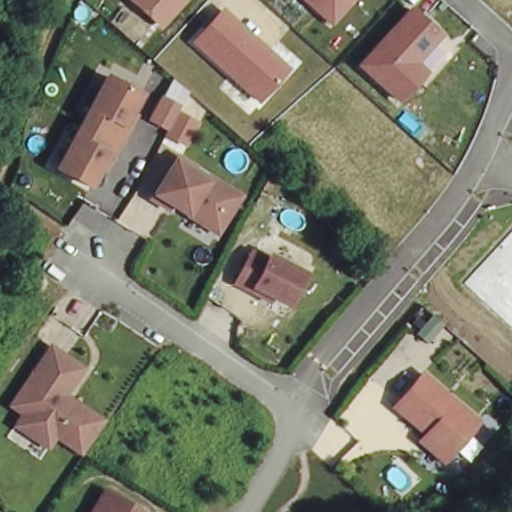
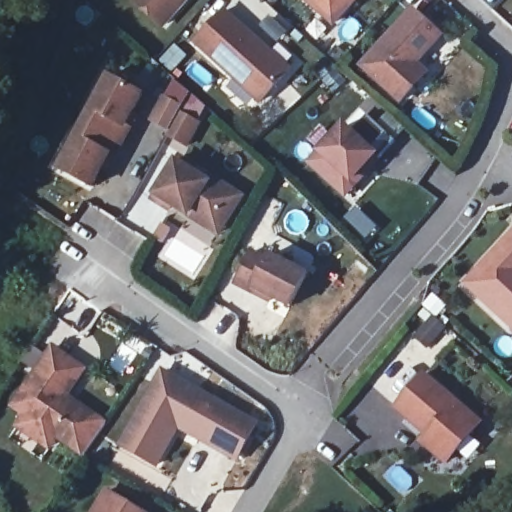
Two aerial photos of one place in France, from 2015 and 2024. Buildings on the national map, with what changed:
unchanged [(165,28),(133,0),(191,0),(165,28)]
unchanged [(305,0),(357,0),(335,25),(305,0)]
unchanged [(358,67),(412,6),(445,35),(437,45),(446,53),(400,103),(358,67)]
unchanged [(225,8),(291,69),(261,103),(194,42),(225,8)]
unchanged [(131,126),(123,140),(84,119),(109,73),(143,91),(132,110),(138,113),(131,126)]
unchanged [(174,77),(191,92),(181,112),(202,123),(189,145),(167,135),(170,129),(151,120),(174,77)]
new [(354,128),(367,115),(390,135),(380,147),(390,156),(347,202),(306,163),(345,121),(354,128)]
unchanged [(103,165),(92,183),(59,165),(84,119),(123,140),(115,155),(108,168),(103,165)]
unchanged [(187,205),(171,195),(168,199),(152,188),(180,148),(196,158),(193,163),(208,173),(211,168),(241,189),(220,220),(216,225),(187,205)]
unchanged [(470,286),(512,240),(512,326),(470,286)]
unchanged [(251,288),(235,280),(251,248),(266,255),(269,251),(306,270),(290,302),(271,292),(269,297),(251,288)]
unchanged [(20,418),(25,410),(12,402),(22,387),(52,344),(83,365),(64,392),(73,398),(105,419),(84,450),(56,431),(51,439),(48,443),(17,422),(20,418)]
new [(159,466),(120,446),(162,369),(259,423),(237,463),(179,430),(159,466)]
unchanged [(430,433),(397,406),(424,373),(481,420),(448,460),(430,446),(424,440),(430,433)]
unchanged [(149,512),(95,512),(110,488),(149,512)]

